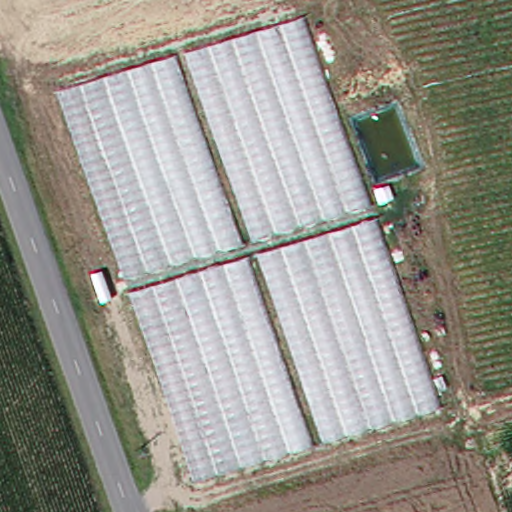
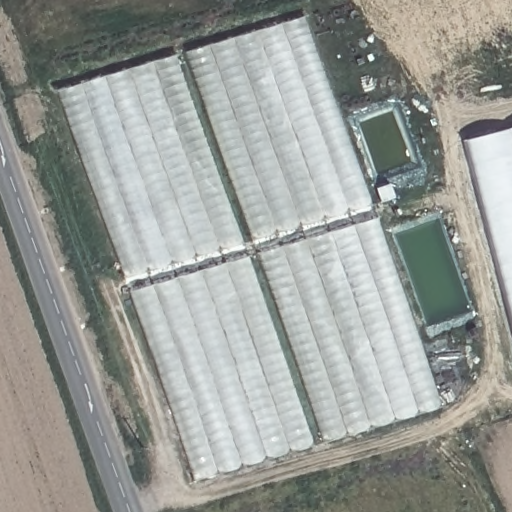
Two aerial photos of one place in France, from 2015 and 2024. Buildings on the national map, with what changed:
unchanged [(308,13),(442,409),(189,486),(57,88),(308,13)]
new [(512,128),(512,328),(462,141),(512,128)]

